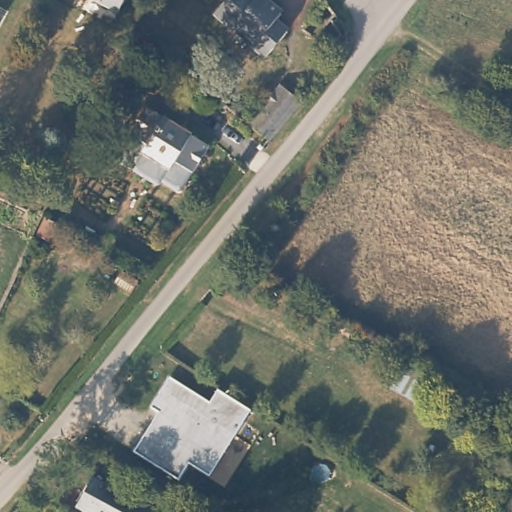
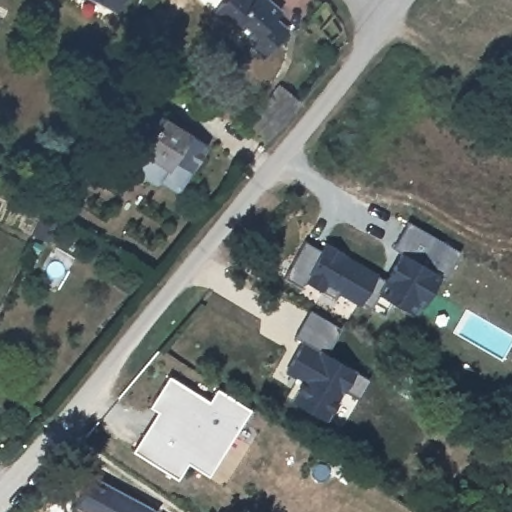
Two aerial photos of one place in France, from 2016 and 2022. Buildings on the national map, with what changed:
unchanged [(117,9),(96,0),(121,0),(117,9)]
unchanged [(275,13),(275,16),(272,20),(285,32),(262,60),(247,49),(250,43),(230,27),(227,30),(210,16),(223,0),(259,0),(275,13)]
unchanged [(302,103),(270,142),(248,125),(281,86),(302,103)]
unchanged [(206,143),(189,171),(170,161),(165,169),(137,152),(142,142),(124,131),(141,103),(206,143)]
new [(408,221),(462,249),(446,277),(442,275),(424,306),(422,305),(416,314),(393,302),(385,315),(368,306),(361,302),(360,305),(336,292),(332,296),(305,279),(301,285),(285,277),(305,240),(322,250),(326,241),(347,253),(345,256),(377,273),(386,279),(402,251),(393,247),(408,221)]
new [(310,309),(342,326),(328,352),(357,367),(370,376),(358,396),(344,388),(326,419),(289,399),(285,396),(295,377),(285,371),(302,340),(294,336),(310,309)]
unchanged [(425,376),(437,383),(423,405),(391,386),(403,364),(425,376)]
unchanged [(211,402),(219,389),(251,410),(211,476),(189,462),(179,479),(136,452),(160,412),(151,406),(170,376),(211,402)]
unchanged [(82,512),(79,510),(94,483),(146,512),(82,512)]

